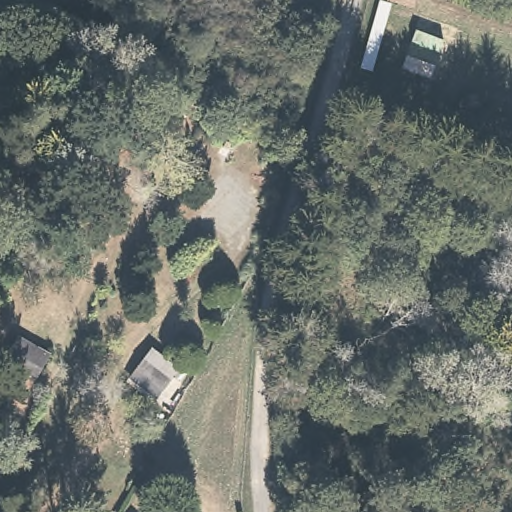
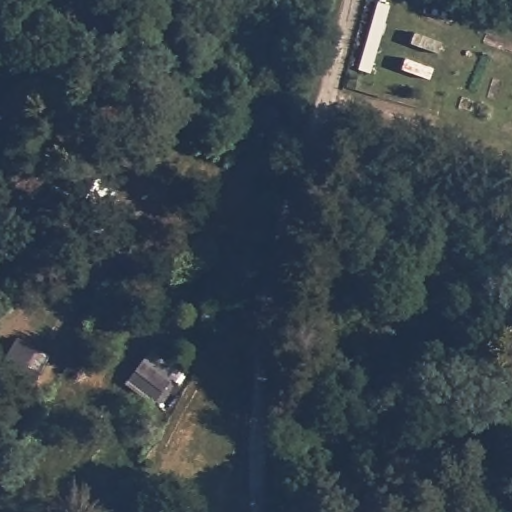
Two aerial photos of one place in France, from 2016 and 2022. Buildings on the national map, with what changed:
unchanged [(4,362),(10,353),(18,339),(48,356),(37,376),(23,368),(21,372),(4,362)]
unchanged [(175,387),(171,393),(162,387),(154,397),(129,377),(141,361),(175,387)]

